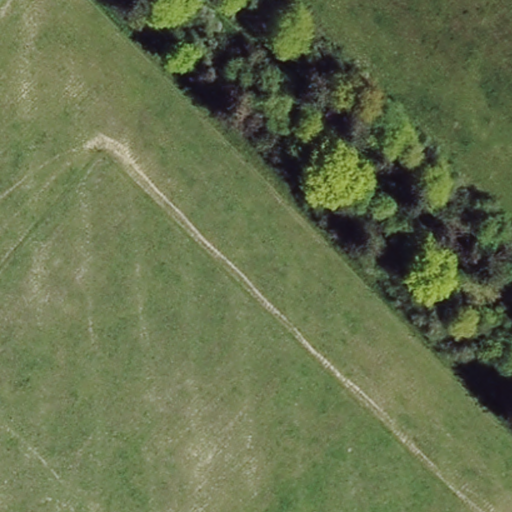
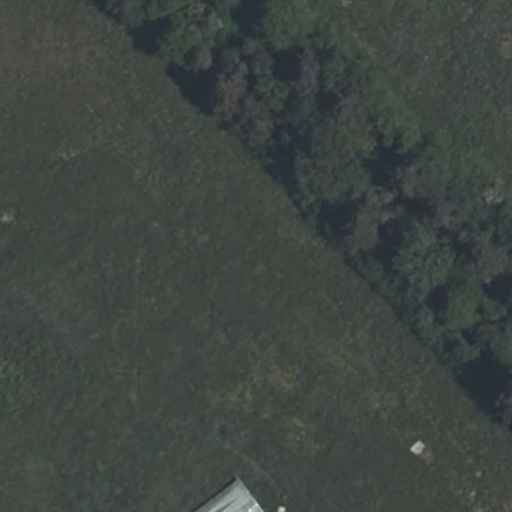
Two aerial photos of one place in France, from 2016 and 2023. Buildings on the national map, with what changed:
new [(240,480),(264,512),(198,512),(240,480)]

